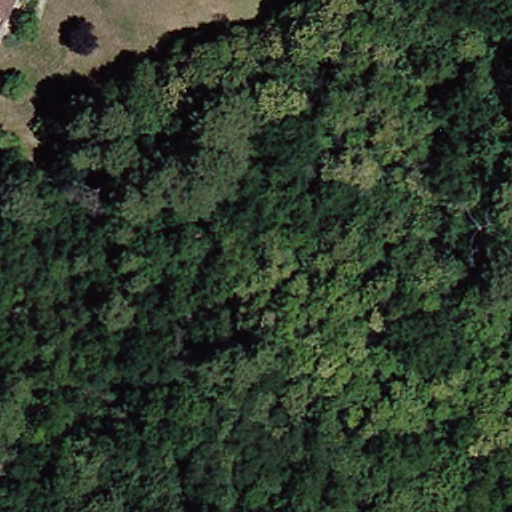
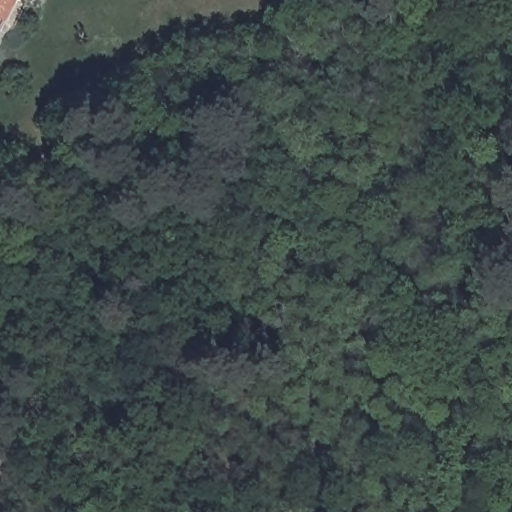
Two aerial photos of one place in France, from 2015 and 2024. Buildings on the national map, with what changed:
unchanged [(0,10),(0,0),(6,0),(0,10)]

